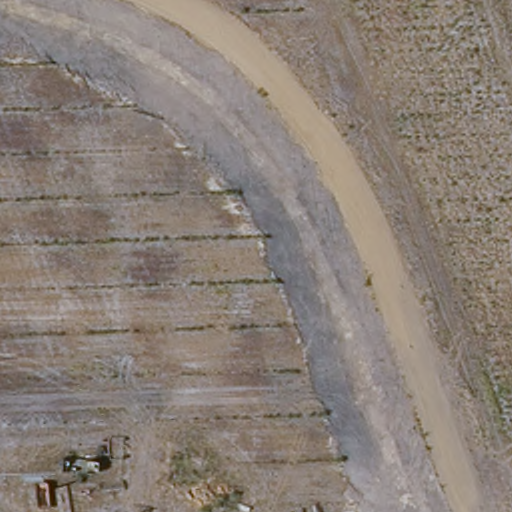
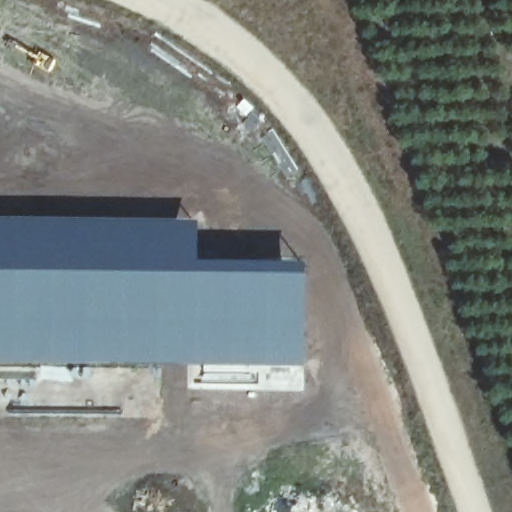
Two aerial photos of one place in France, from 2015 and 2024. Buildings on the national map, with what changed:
new [(197,220),(199,263),(206,263),(206,269),(251,271),(305,271),(304,366),(201,365),(146,364),(51,366),(0,365),(0,215),(197,220)]
new [(201,365),(304,366),(303,390),(200,384),(201,365)]

